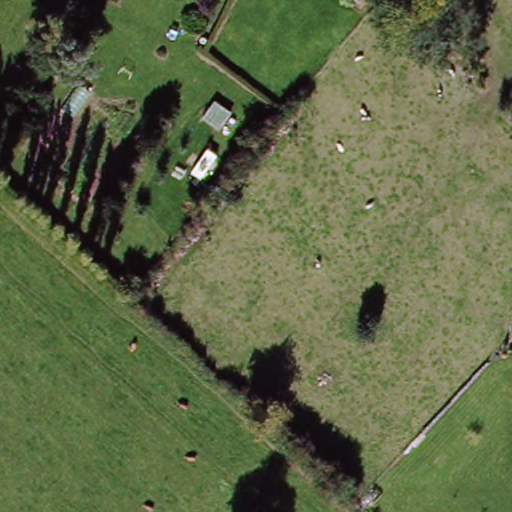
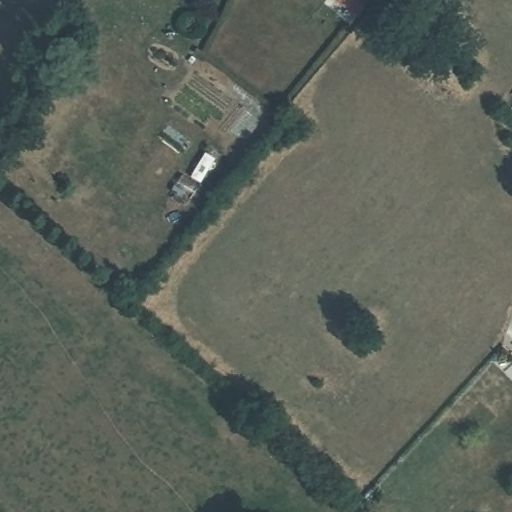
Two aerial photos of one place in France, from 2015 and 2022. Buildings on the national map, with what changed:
unchanged [(509,99),(512,96),(512,103),(509,99)]

